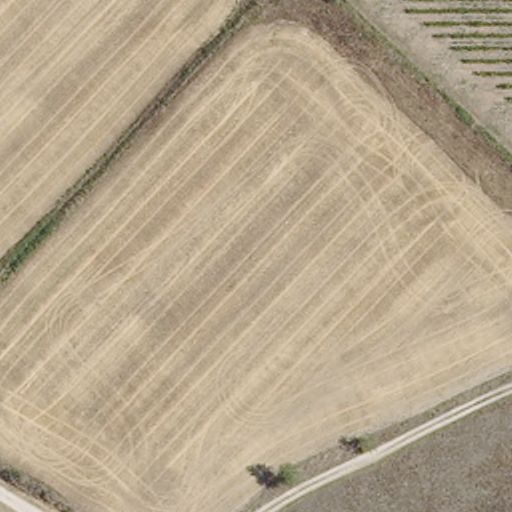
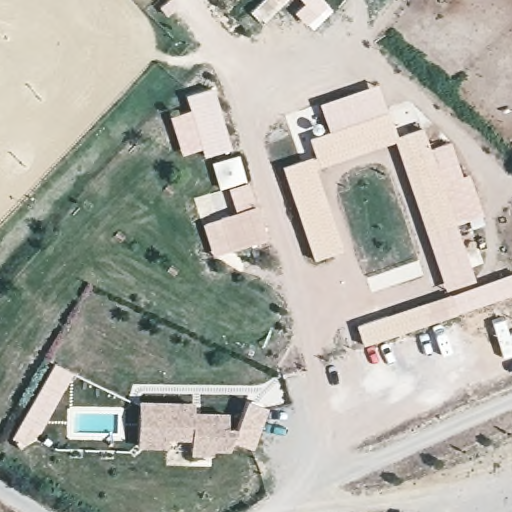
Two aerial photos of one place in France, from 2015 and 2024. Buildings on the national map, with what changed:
new [(188,109),(185,95),(212,87),(230,149),(204,157),(201,149),(181,156),(168,117),(188,109)]
new [(396,142),(315,169),(343,251),(313,260),(282,166),(315,156),(310,138),(387,112),(396,136),(421,128),(475,280),(446,290),(396,142)]
new [(267,238),(212,256),(203,224),(256,205),(267,238)]
new [(357,325),(450,294),(456,313),(364,345),(357,325)]
new [(10,440),(54,361),(73,372),(33,441),(10,440)]
new [(194,401),(194,411),(227,412),(227,428),(236,428),(247,400),(267,408),(253,448),(233,441),(230,451),(212,451),(212,456),(191,455),(192,440),(167,439),(167,449),(138,448),(140,400),(194,401)]

